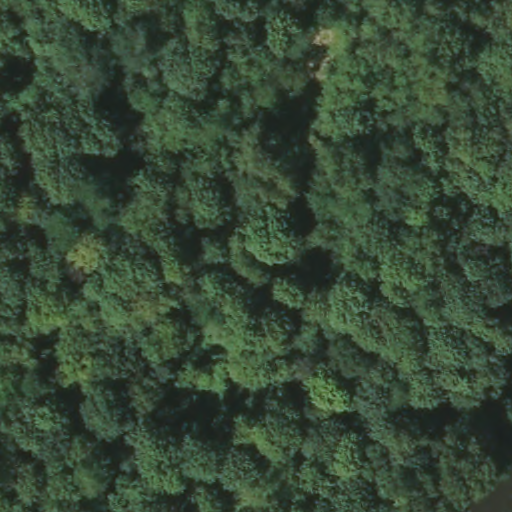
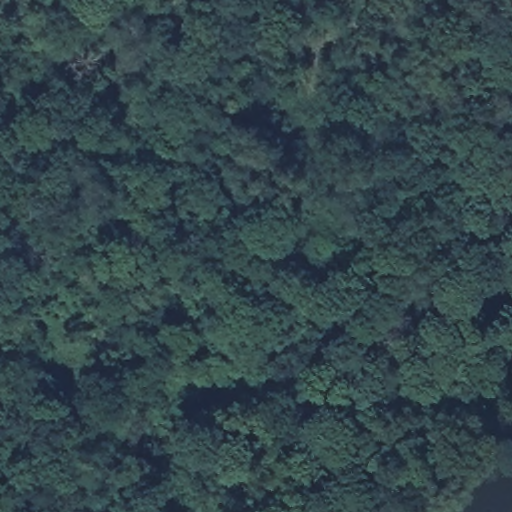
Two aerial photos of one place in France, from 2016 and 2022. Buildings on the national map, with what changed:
[]

